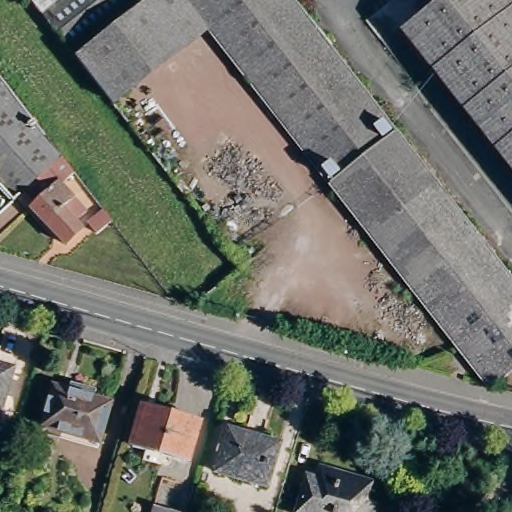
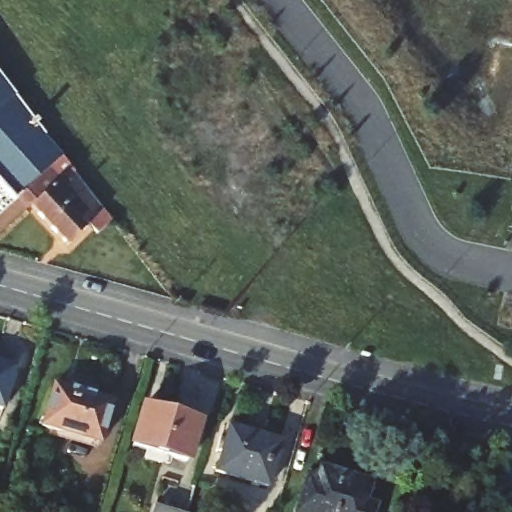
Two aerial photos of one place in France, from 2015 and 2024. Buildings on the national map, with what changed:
demolished [(25,0),(141,0),(70,56),(25,0)]
demolished [(485,387),(203,28),(181,0),(285,0),(512,289),(512,366),(485,387)]
demolished [(423,65),(395,29),(432,0),(512,0),(512,179),(423,65)]
unchanged [(57,156),(13,195),(9,200),(0,190),(0,83),(24,114),(57,156)]
unchanged [(55,178),(82,210),(72,219),(80,227),(61,245),(13,195),(57,156),(65,167),(55,178)]
unchanged [(92,232),(84,222),(99,210),(107,221),(92,232)]
unchanged [(3,408),(0,407),(0,363),(15,367),(3,408)]
unchanged [(87,385),(85,392),(100,396),(100,402),(90,435),(33,419),(42,386),(44,380),(60,385),(62,378),(87,385)]
unchanged [(182,456),(128,441),(140,399),(194,414),(182,456)]
unchanged [(212,464),(223,422),(276,437),(265,479),(212,464)]
unchanged [(366,512),(308,512),(292,507),(300,477),(312,480),(317,461),(366,475),(360,496),(363,496),(370,498),(366,512)]
unchanged [(150,499),(181,509),(190,512),(146,512),(150,499)]

